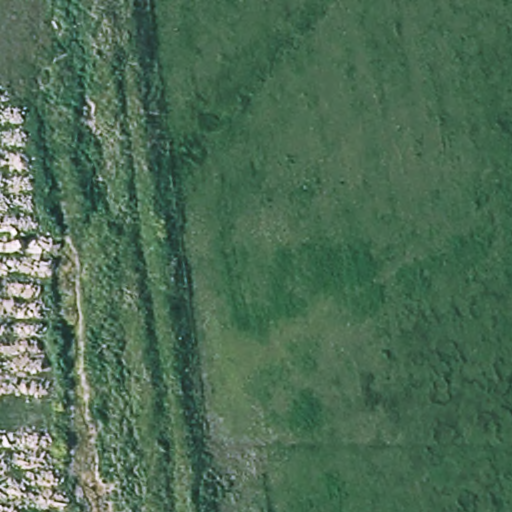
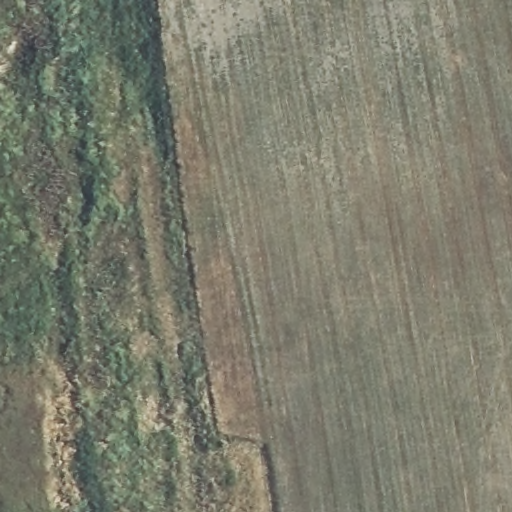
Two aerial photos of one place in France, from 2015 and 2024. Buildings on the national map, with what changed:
[]

